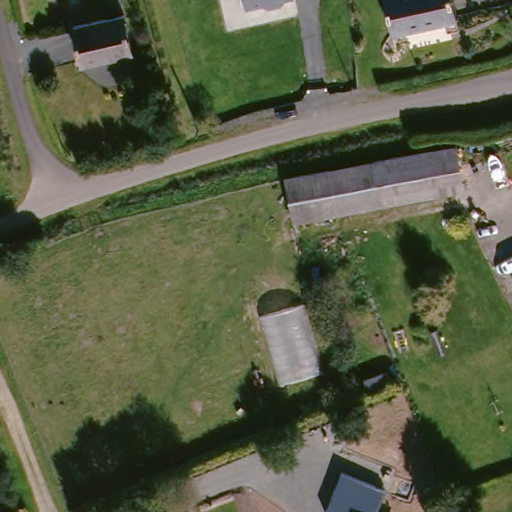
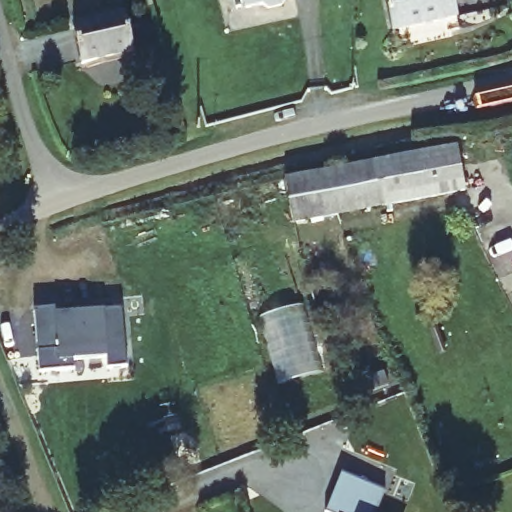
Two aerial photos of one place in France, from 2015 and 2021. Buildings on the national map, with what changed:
unchanged [(279,4),(265,6),(259,2),(243,4),(242,0),(282,0),(279,4)]
unchanged [(391,25),(387,0),(451,0),(453,14),(391,25)]
unchanged [(76,21),(124,11),(132,49),(85,59),(76,21)]
unchanged [(293,217),(286,173),(456,144),(464,188),(293,217)]
new [(66,310),(67,320),(76,318),(76,316),(131,310),(136,368),(116,370),(115,357),(82,360),(83,370),(51,373),(44,313),(66,310)]
unchanged [(342,475),(387,493),(378,512),(329,512),(327,511),(342,475)]

